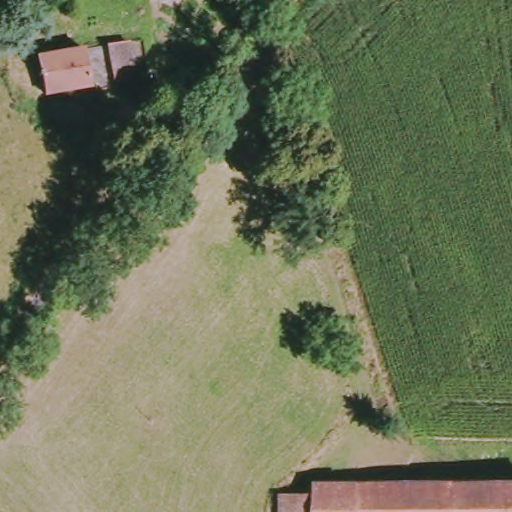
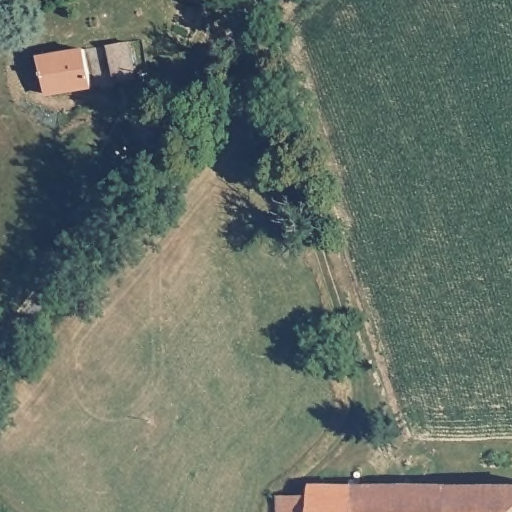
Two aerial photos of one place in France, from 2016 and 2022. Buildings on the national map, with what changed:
unchanged [(42,93),(38,59),(125,46),(130,81),(42,93)]
unchanged [(286,500),(314,499),(316,484),(512,484),(512,512),(286,512),(286,500)]

